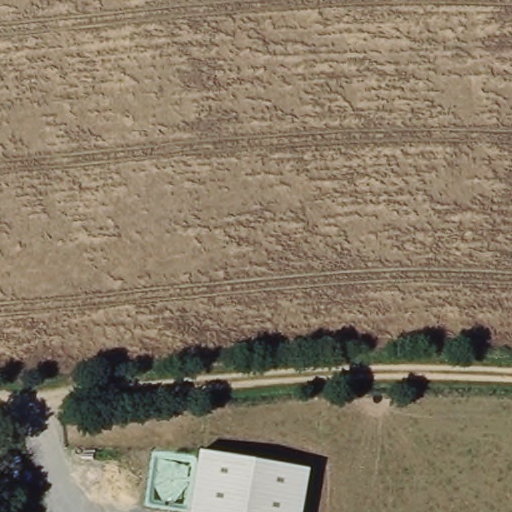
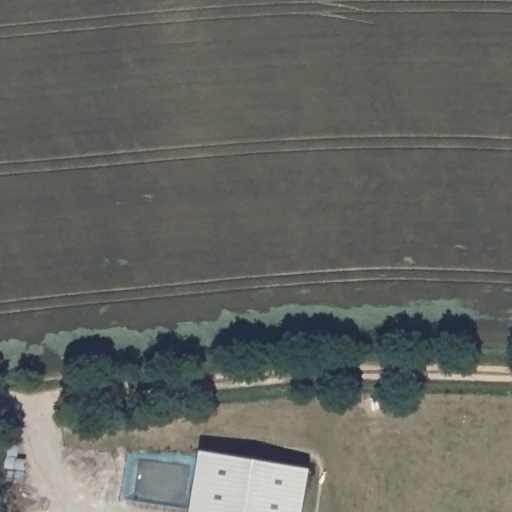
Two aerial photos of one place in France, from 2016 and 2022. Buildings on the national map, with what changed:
unchanged [(308,465),(302,512),(191,512),(202,448),(308,465)]

